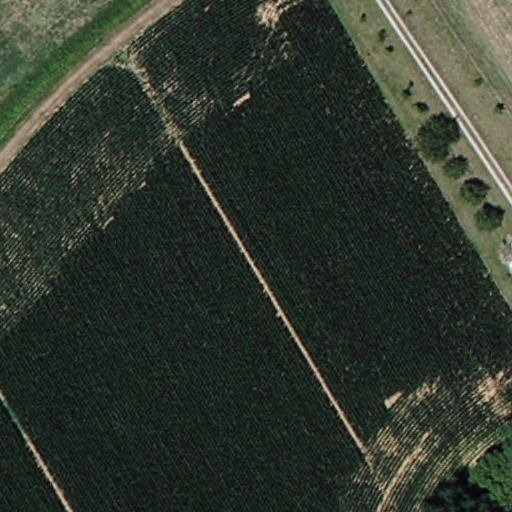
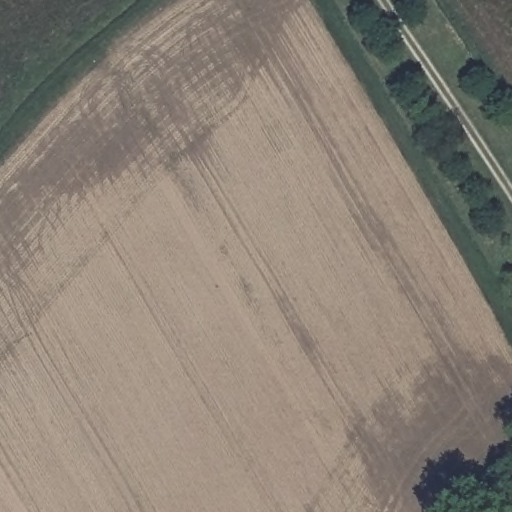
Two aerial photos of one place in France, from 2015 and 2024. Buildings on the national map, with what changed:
unchanged [(510,470),(502,453),(512,448),(512,468),(510,470)]

